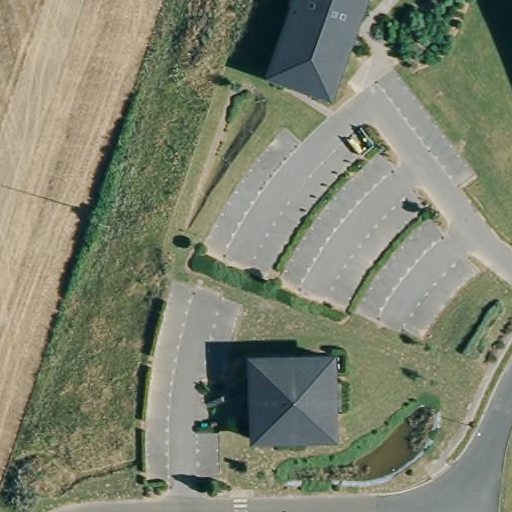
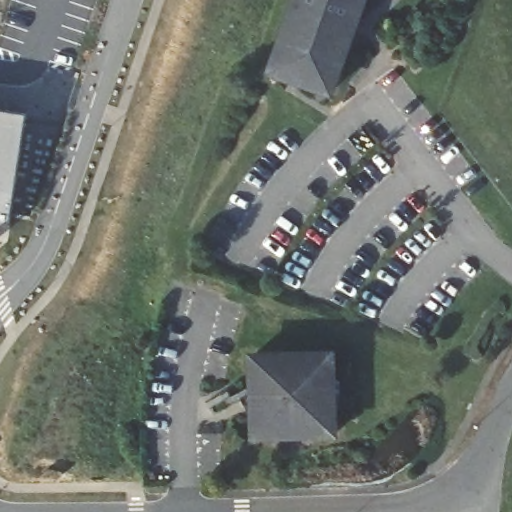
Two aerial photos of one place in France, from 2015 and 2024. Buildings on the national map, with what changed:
unchanged [(288,5),(290,0),(362,0),(358,10),(352,9),(346,24),(352,26),(327,95),(268,74),(292,6),(288,5)]
new [(5,224),(0,227),(0,117),(22,120),(5,224)]
unchanged [(250,359),(330,356),(332,436),(252,439),(250,359)]

